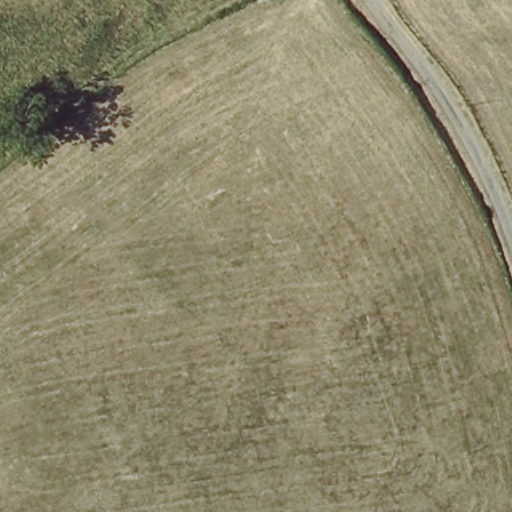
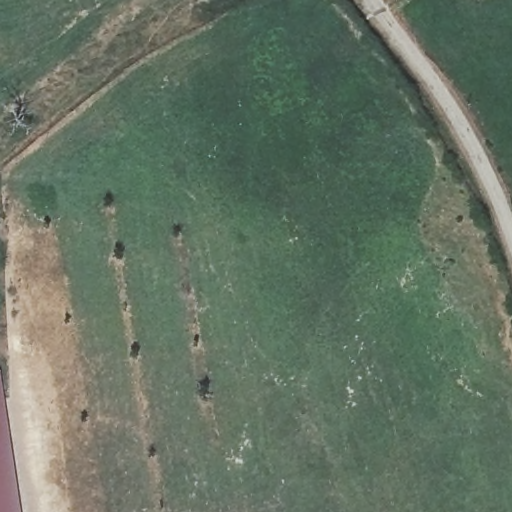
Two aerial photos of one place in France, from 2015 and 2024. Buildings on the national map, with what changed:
new [(21,512),(0,512),(0,375),(21,512)]

